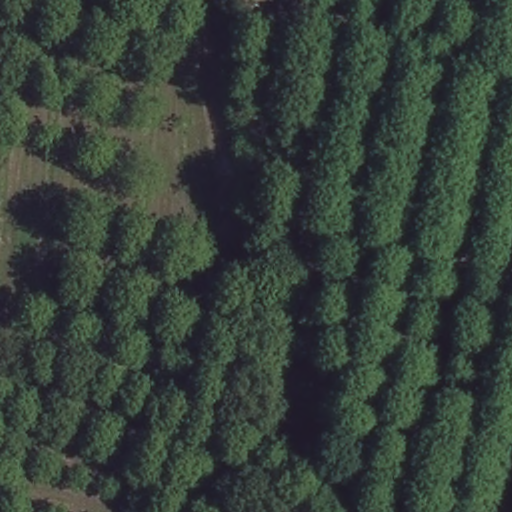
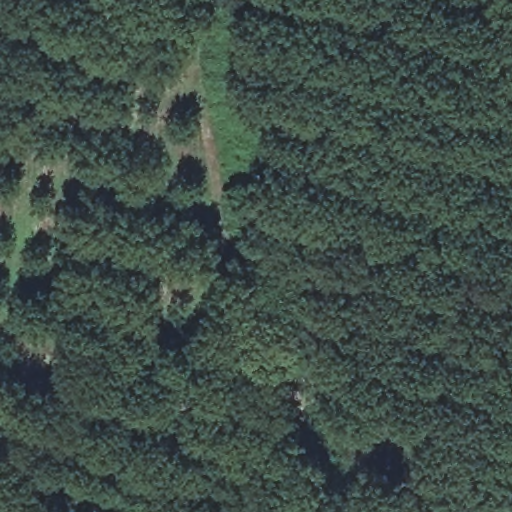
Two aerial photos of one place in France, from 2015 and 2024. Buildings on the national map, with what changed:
[]

